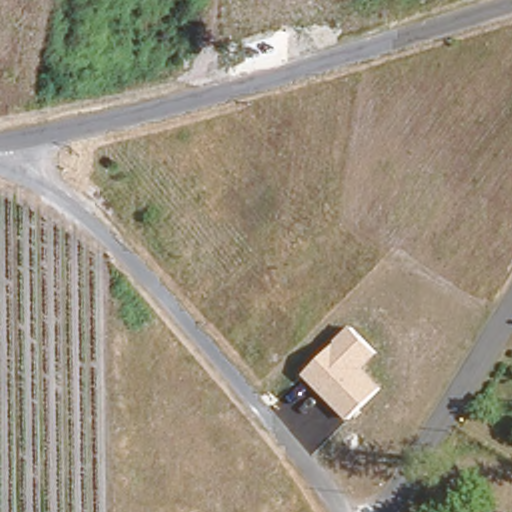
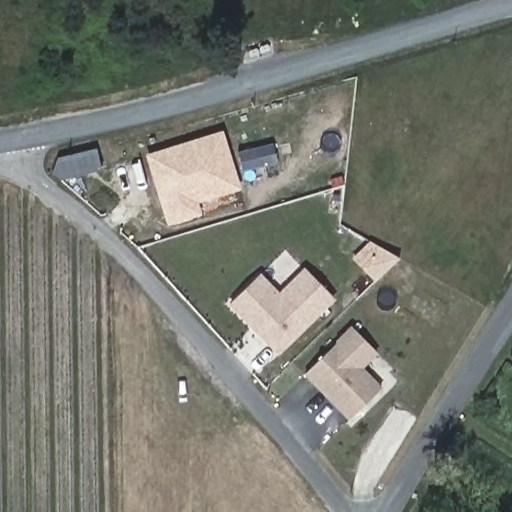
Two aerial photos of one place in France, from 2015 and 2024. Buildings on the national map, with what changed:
new [(145,155),(224,130),(242,190),(199,204),(202,216),(167,226),(145,155)]
new [(386,244),(401,253),(371,282),(360,270),(386,244)]
new [(226,305),(255,277),(275,297),(301,272),(329,302),(273,355),(260,341),(249,328),(226,305)]
unchanged [(351,421),(303,375),(351,327),(380,355),(365,370),(384,389),(351,421)]

